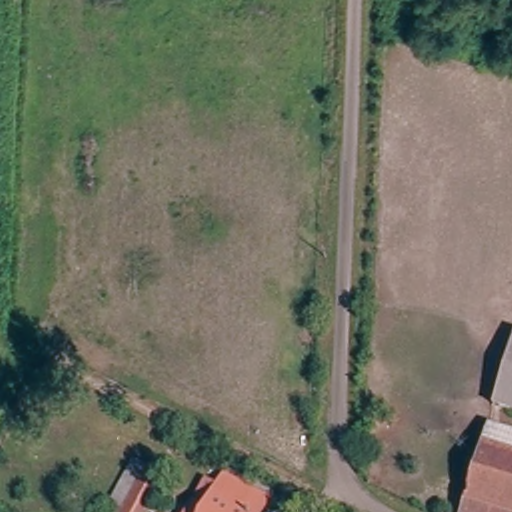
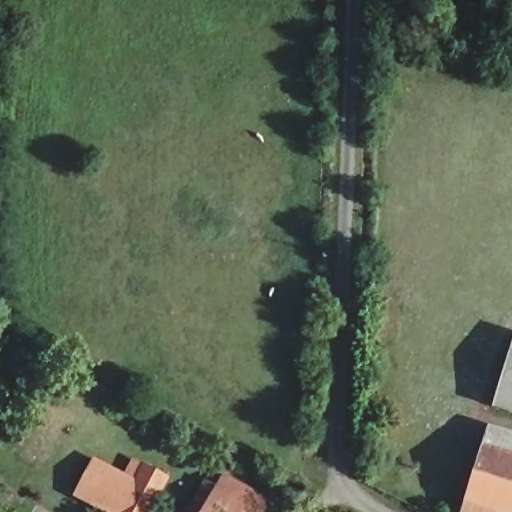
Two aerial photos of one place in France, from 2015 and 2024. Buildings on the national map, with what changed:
unchanged [(512,346),(512,412),(492,406),(512,346)]
unchanged [(512,438),(512,512),(490,512),(472,504),(497,438),(499,433),(512,438)]
new [(72,496),(94,457),(126,473),(133,458),(169,475),(166,482),(152,476),(145,472),(132,496),(118,490),(109,508),(115,512),(104,512),(72,496)]
unchanged [(109,508),(118,490),(132,496),(145,472),(152,476),(166,482),(151,512),(115,512),(109,508)]
unchanged [(264,506),(261,512),(189,512),(190,510),(202,486),(214,491),(219,482),(264,506)]

